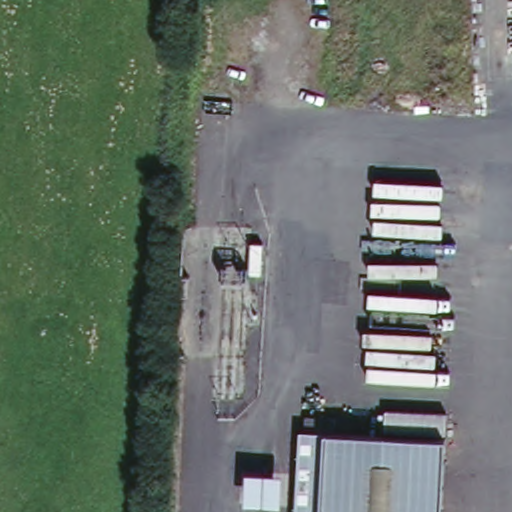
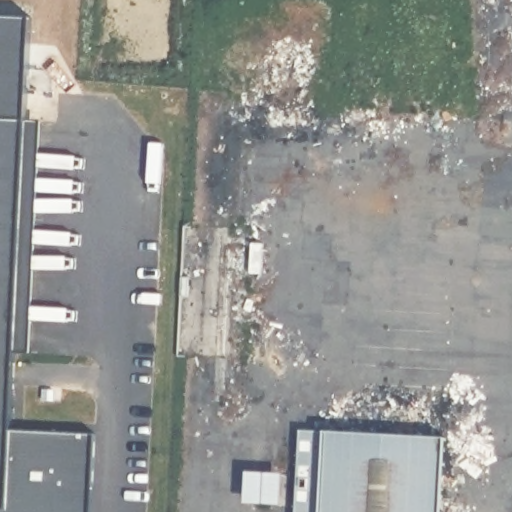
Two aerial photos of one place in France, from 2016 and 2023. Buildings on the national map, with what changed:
new [(27,351),(12,350),(7,431),(91,436),(88,512),(0,512),(0,119),(37,121),(27,351)]
unchanged [(446,434),(444,512),(297,512),(302,428),(446,434)]
unchanged [(246,473),(285,475),(282,506),(244,505),(246,473)]

